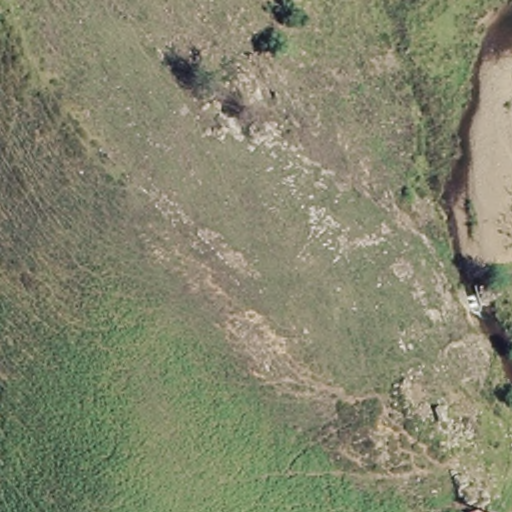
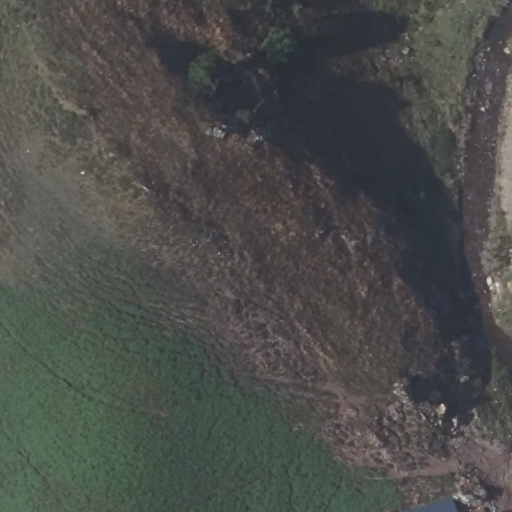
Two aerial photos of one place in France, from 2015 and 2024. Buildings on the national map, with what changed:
new [(453,499),(457,512),(409,512),(453,499)]

